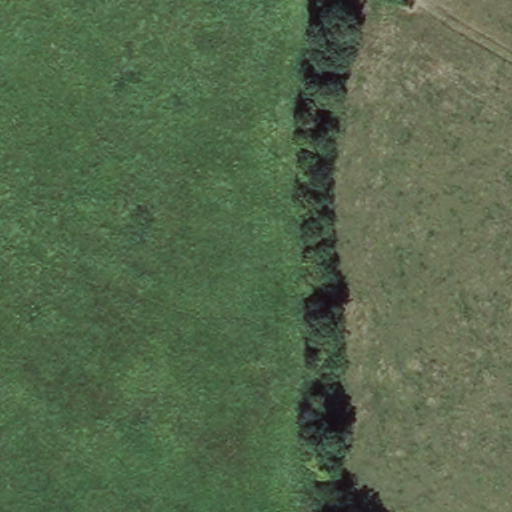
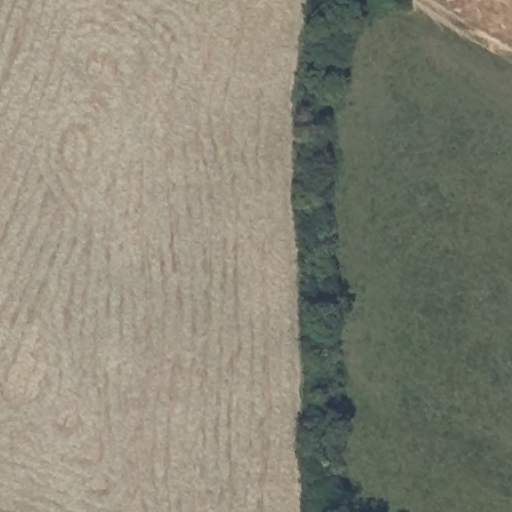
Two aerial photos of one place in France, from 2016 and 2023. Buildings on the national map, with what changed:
[]

